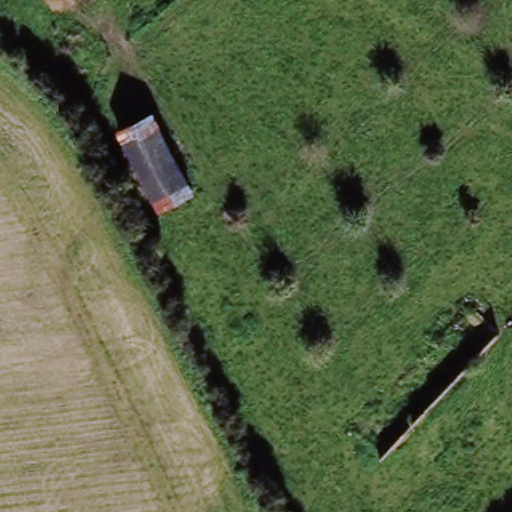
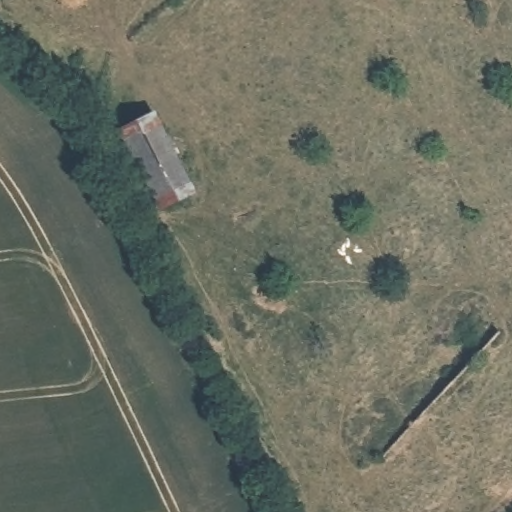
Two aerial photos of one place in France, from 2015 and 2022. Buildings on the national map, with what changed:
unchanged [(158,207),(121,130),(154,114),(192,190),(158,207)]

